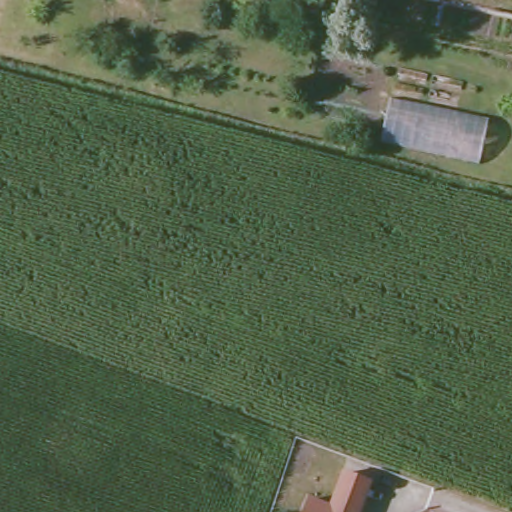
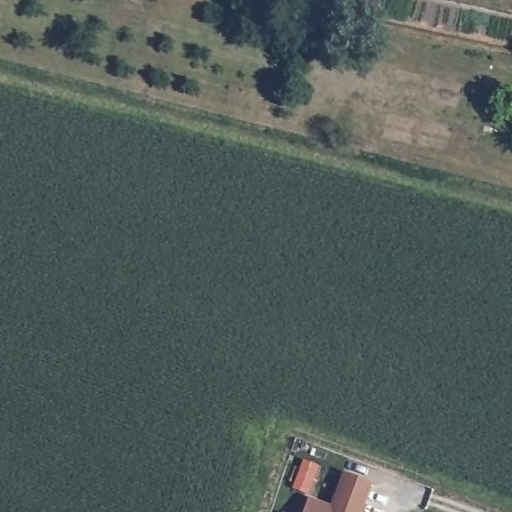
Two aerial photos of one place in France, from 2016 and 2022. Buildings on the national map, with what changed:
demolished [(480,165),(381,144),(391,99),(487,122),(480,165)]
unchanged [(372,487),(363,512),(334,512),(346,477),(372,487)]
unchanged [(309,504),(329,512),(306,512),(309,504)]

